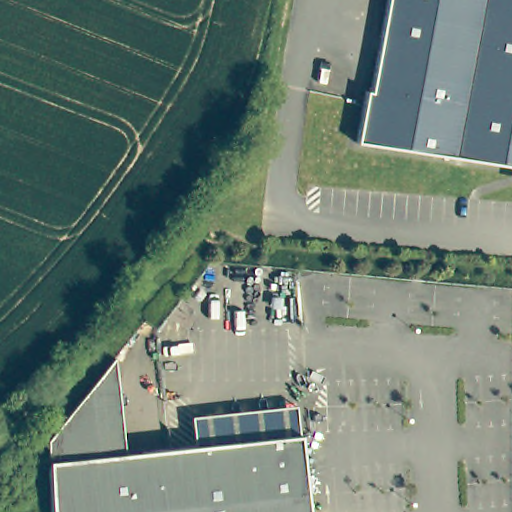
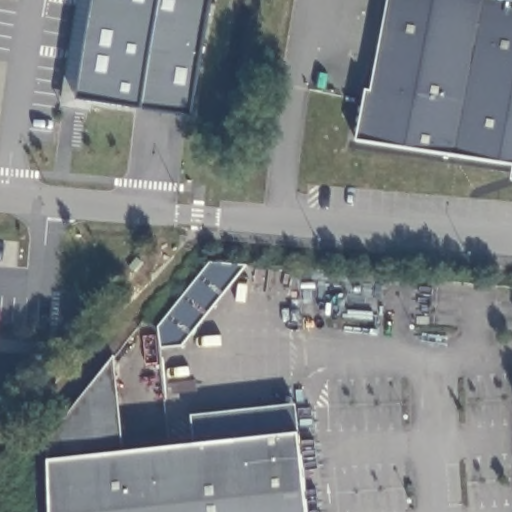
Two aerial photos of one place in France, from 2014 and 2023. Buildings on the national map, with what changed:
new [(80,98),(85,64),(96,0),(210,0),(201,47),(192,114),(141,106),(80,98)]
unchanged [(365,140),(373,91),(378,92),(396,0),(512,0),(512,163),(365,140)]
unchanged [(47,437),(104,367),(114,355),(118,395),(124,450),(49,458),(47,437)]
unchanged [(194,443),(190,418),(295,407),(297,432),(194,443)]
unchanged [(124,450),(194,443),(297,432),(306,512),(50,512),(49,458),(124,450)]

